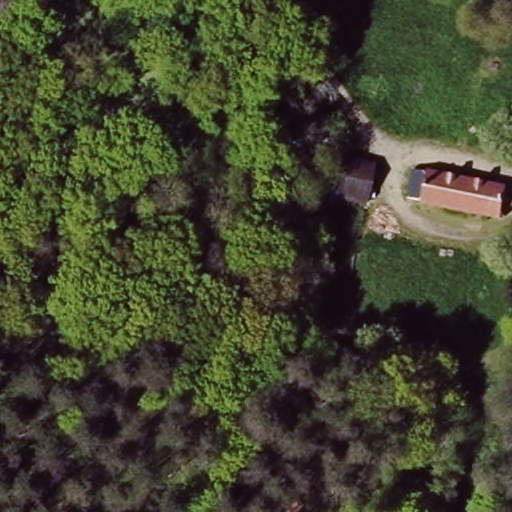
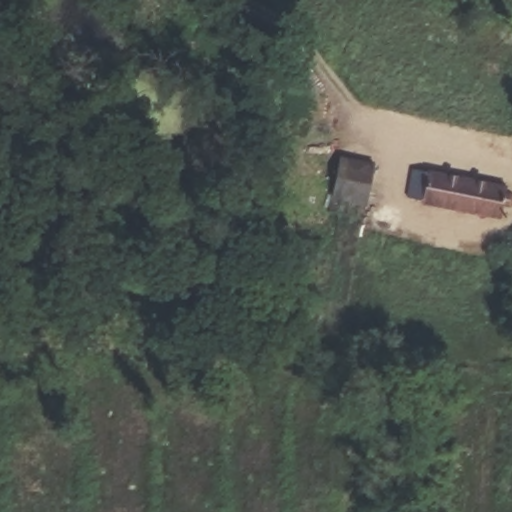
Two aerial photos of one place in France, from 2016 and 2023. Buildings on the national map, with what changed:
unchanged [(382,176),(373,203),(330,191),(340,162),(382,176)]
unchanged [(503,193),(512,194),(512,200),(510,210),(497,208),(496,216),(404,199),(405,190),(395,187),(397,172),(402,174),(404,162),(505,181),(503,193)]

